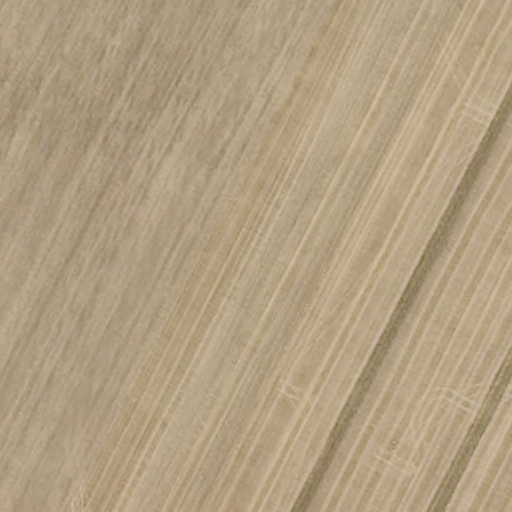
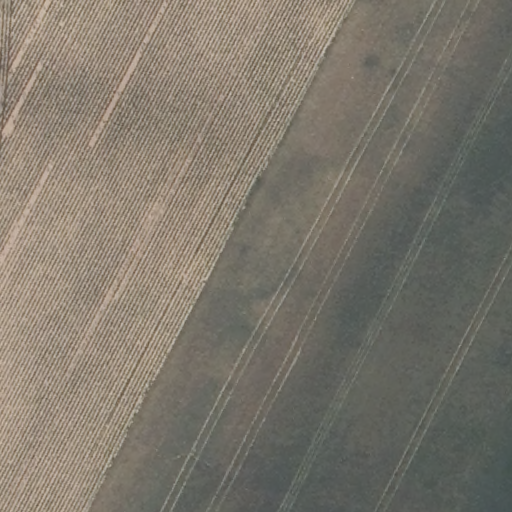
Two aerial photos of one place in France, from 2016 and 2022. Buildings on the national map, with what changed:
[]

